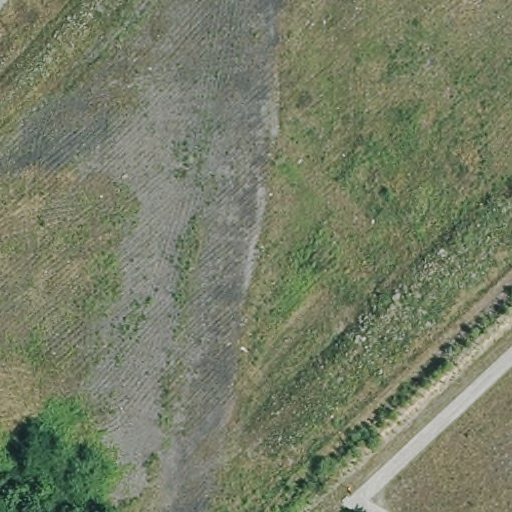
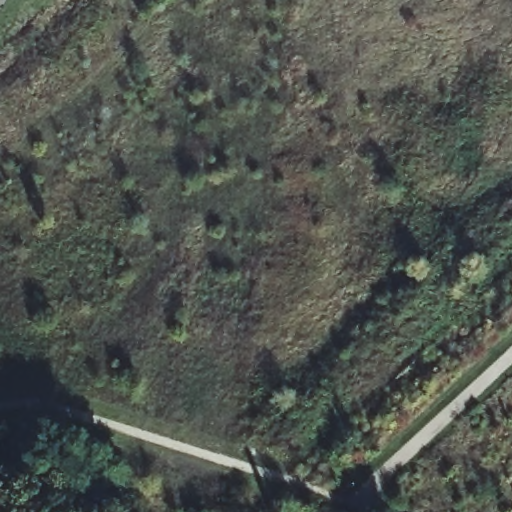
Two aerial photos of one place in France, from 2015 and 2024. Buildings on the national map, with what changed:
[]

